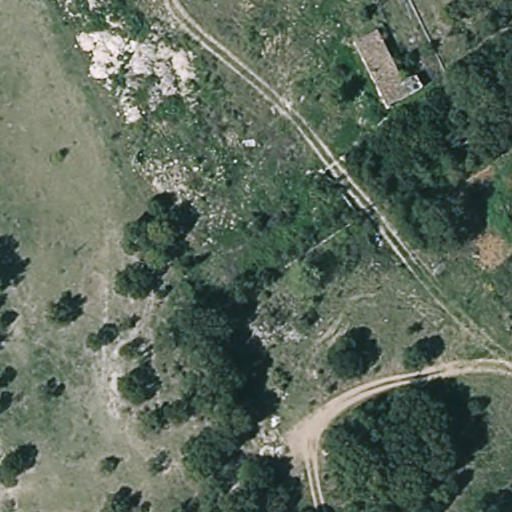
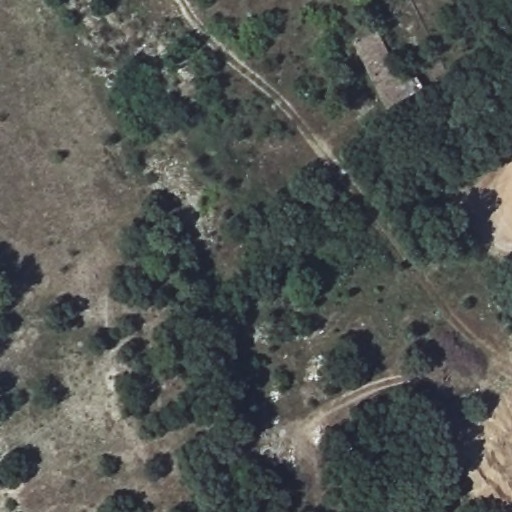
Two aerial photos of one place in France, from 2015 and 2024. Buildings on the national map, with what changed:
unchanged [(410,99),(386,111),(350,43),(377,34),(410,99)]

